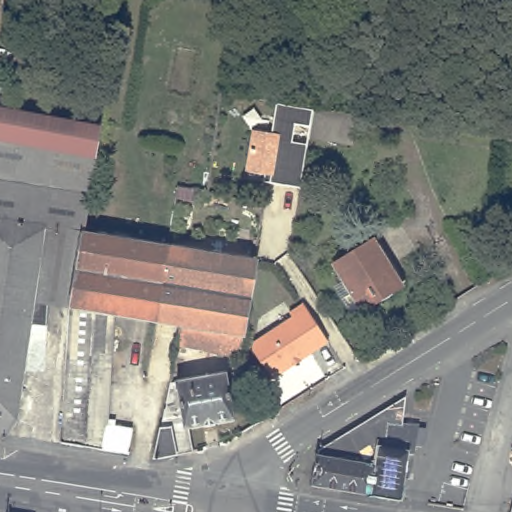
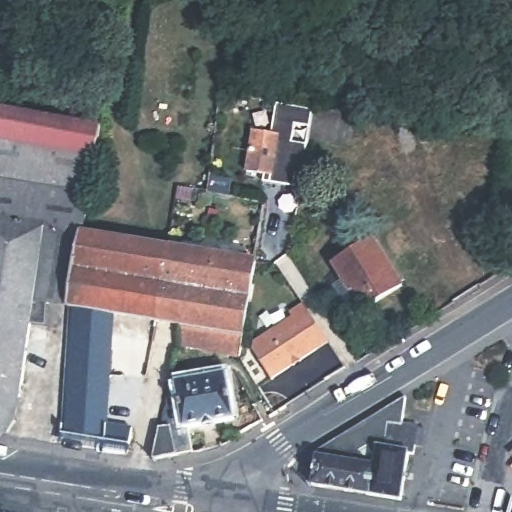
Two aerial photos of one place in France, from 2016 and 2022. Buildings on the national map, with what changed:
unchanged [(264,174),(246,171),(253,130),(271,132),(276,99),(313,106),(310,126),(295,124),(292,141),(307,144),(301,179),(300,187),(269,182),(263,181),(264,174)]
unchanged [(106,125),(87,232),(74,305),(74,307),(53,303),(0,293),(0,106),(106,125)]
unchanged [(355,114),(350,145),(308,137),(310,126),(313,106),(355,114)]
unchanged [(173,246),(164,320),(119,312),(74,305),(87,232),(173,246)]
unchanged [(347,297),(356,292),(338,263),(379,239),(408,286),(367,310),(358,316),(347,297)]
unchanged [(261,260),(248,335),(186,324),(164,320),(173,246),(261,260)]
unchanged [(53,303),(52,326),(36,326),(22,420),(11,435),(0,433),(0,293),(53,303)]
unchanged [(116,369),(113,419),(120,420),(119,426),(138,428),(133,453),(107,449),(66,442),(74,307),(74,305),(119,312),(116,369)]
unchanged [(272,380),(254,351),(255,342),(293,317),(290,313),(304,305),(329,343),(272,380)]
unchanged [(183,342),(186,324),(248,335),(244,357),(191,347),(190,355),(181,353),(183,342)]
unchanged [(158,458),(165,427),(175,382),(229,373),(237,420),(200,426),(192,427),(198,451),(182,455),(161,458),(158,458)]
unchanged [(400,500),(312,485),(317,450),(405,396),(405,397),(401,425),(406,426),(407,424),(416,425),(416,427),(417,427),(412,455),(408,453),(400,500)]

